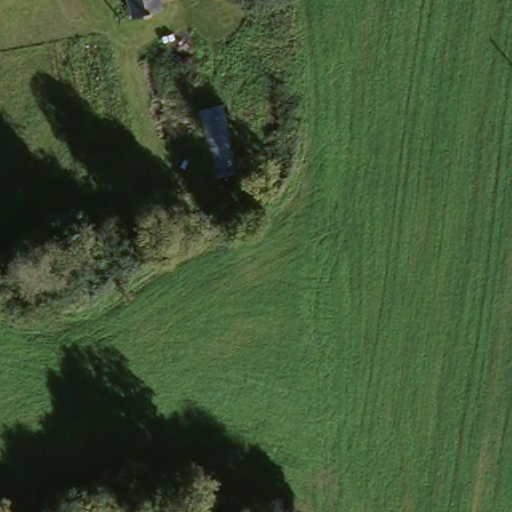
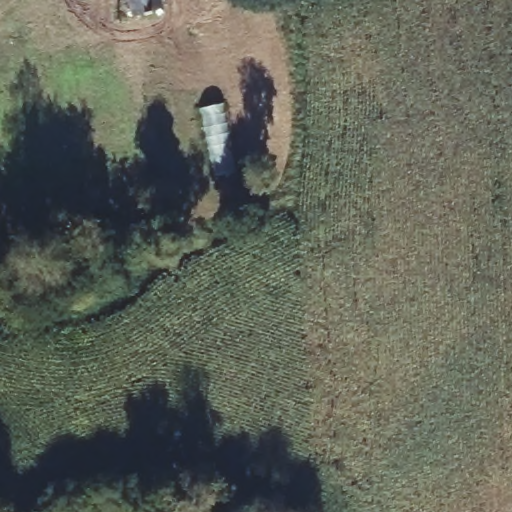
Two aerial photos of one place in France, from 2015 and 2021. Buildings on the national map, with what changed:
unchanged [(133,17),(127,0),(159,0),(161,10),(133,17)]

